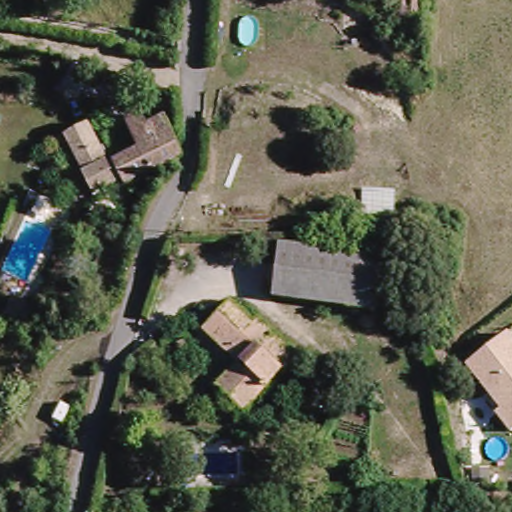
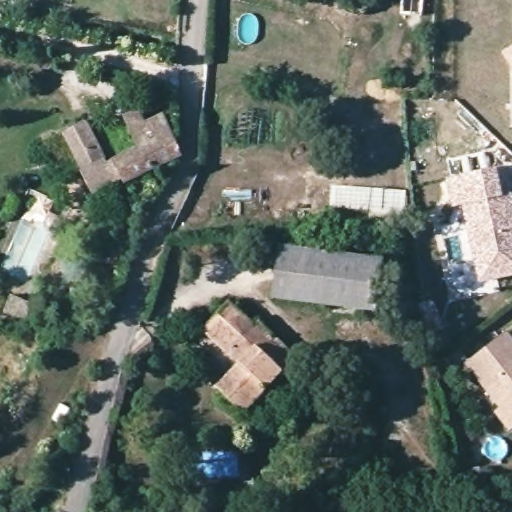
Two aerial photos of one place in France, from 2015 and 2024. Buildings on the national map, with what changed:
unchanged [(395,6),(395,0),(415,0),(415,6),(395,6)]
new [(512,72),(500,53),(512,46),(512,72)]
unchanged [(134,182),(122,159),(145,146),(128,116),(142,109),(150,121),(167,110),(191,147),(134,182)]
unchanged [(134,182),(116,188),(113,183),(82,195),(55,132),(87,118),(109,164),(122,159),(134,182)]
new [(512,197),(512,277),(480,285),(462,206),(452,207),(446,179),(505,165),(512,197)]
new [(406,190),(404,221),(331,215),(334,184),(406,190)]
unchanged [(280,305),(286,250),(385,258),(380,315),(280,305)]
unchanged [(238,365),(204,331),(230,305),(253,325),(260,320),(301,363),(285,380),(277,376),(243,412),(226,396),(216,387),(238,365)]
unchanged [(501,409),(465,363),(506,330),(512,338),(512,428),(509,430),(494,413),(501,409)]

